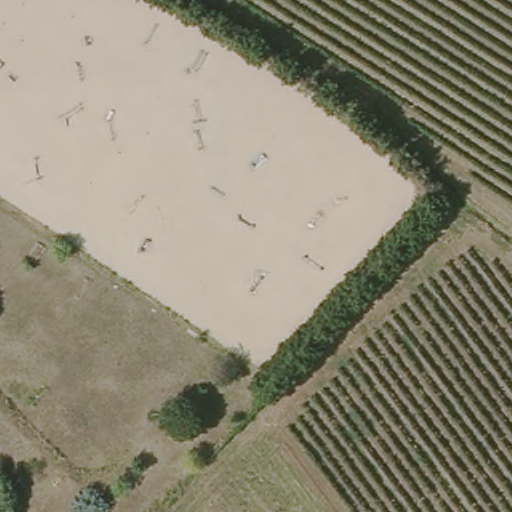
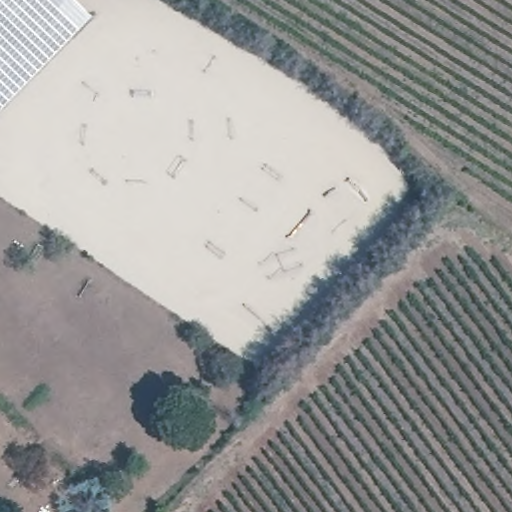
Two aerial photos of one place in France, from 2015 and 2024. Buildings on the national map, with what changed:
new [(75,0),(91,16),(0,112),(0,0),(75,0)]

